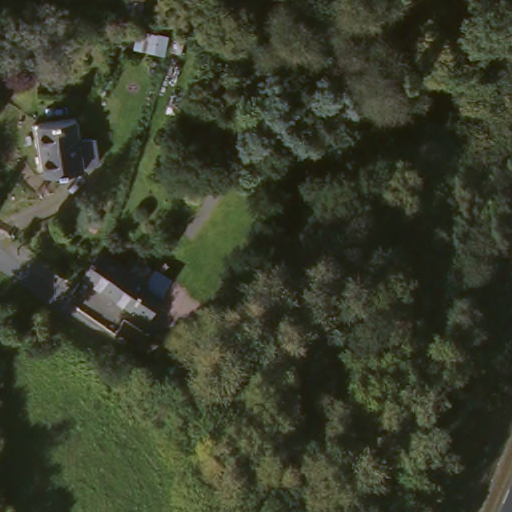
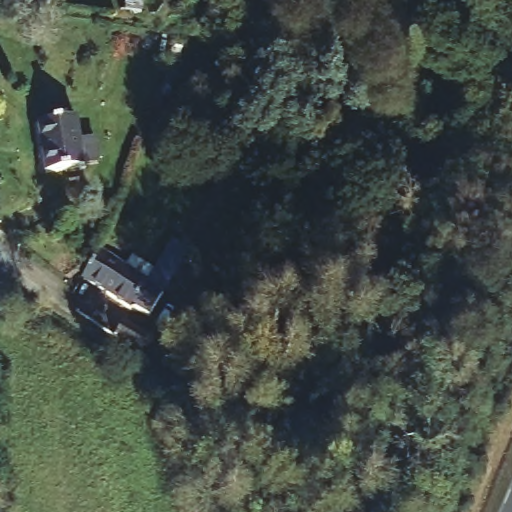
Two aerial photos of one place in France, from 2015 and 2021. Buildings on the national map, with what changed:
unchanged [(33,128),(71,122),(78,175),(41,180),(33,128)]
unchanged [(119,272),(125,275),(133,265),(149,276),(143,287),(143,288),(141,292),(157,301),(144,323),(127,312),(126,315),(76,283),(93,256),(119,272)]
unchanged [(124,321),(149,336),(140,352),(114,335),(124,321)]

